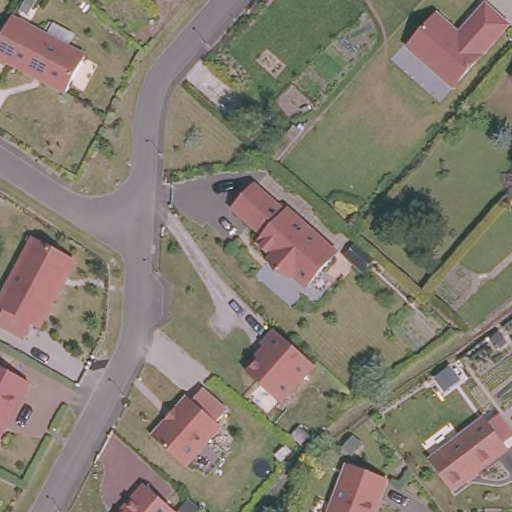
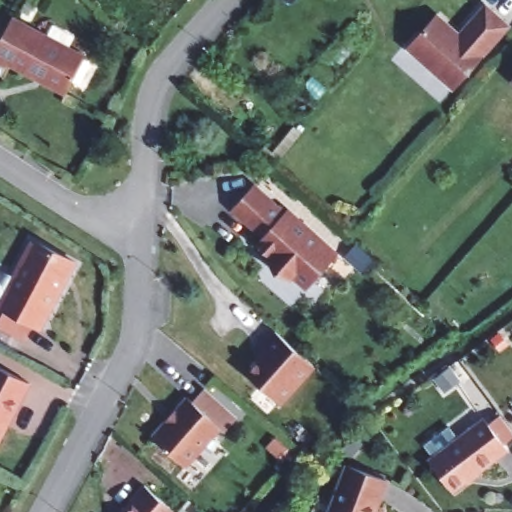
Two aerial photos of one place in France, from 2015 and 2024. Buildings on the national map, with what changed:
unchanged [(454,91),(405,47),(437,11),(460,31),(485,3),(512,27),(512,28),(454,91)]
unchanged [(13,17),(13,16),(86,55),(66,92),(8,61),(6,64),(0,61),(0,41),(13,17)]
unchanged [(256,185),(287,212),(289,210),(338,252),(308,286),(294,275),(291,277),(278,272),(271,260),(274,257),(259,244),(266,236),(235,210),(256,185)]
unchanged [(75,262),(39,328),(32,325),(24,338),(0,326),(0,316),(4,309),(0,307),(0,300),(33,240),(75,262)]
unchanged [(268,351),(262,345),(274,331),(314,366),(280,404),(247,375),(268,351)]
unchanged [(0,435),(0,366),(29,381),(11,415),(5,426),(0,435)]
unchanged [(152,436),(188,397),(192,401),(203,389),(227,411),(216,423),(220,427),(184,466),(152,436)]
unchanged [(433,455),(489,415),(511,446),(455,486),(433,455)]
unchanged [(391,475),(378,512),(335,512),(353,461),(391,475)]
unchanged [(115,512),(119,508),(141,483),(173,512),(115,512)]

